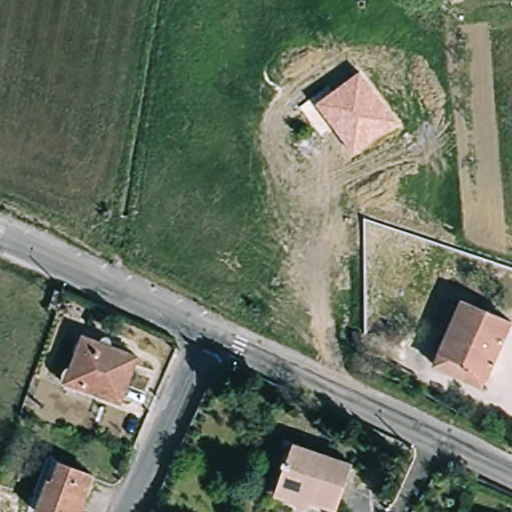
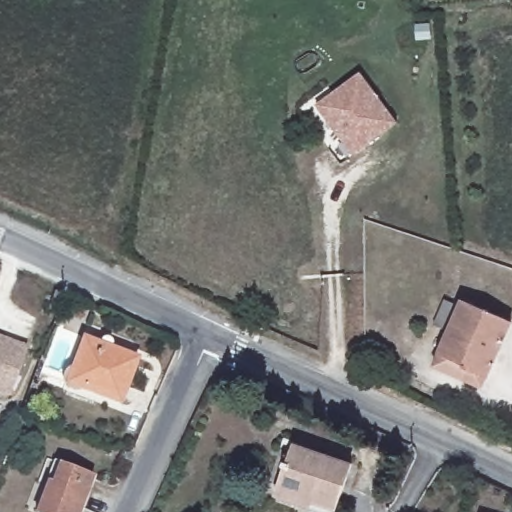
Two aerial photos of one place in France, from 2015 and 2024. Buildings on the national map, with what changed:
unchanged [(359,75),(398,122),(356,155),(319,104),(359,75)]
unchanged [(56,312),(48,310),(55,291),(63,294),(56,312)]
unchanged [(432,366),(438,353),(461,301),(509,322),(485,377),(481,387),(432,366)]
unchanged [(137,357),(120,402),(66,382),(83,337),(137,357)]
new [(26,347),(8,397),(0,394),(0,338),(26,347)]
unchanged [(336,509),(277,489),(293,443),(351,463),(336,509)]
unchanged [(35,512),(48,480),(51,481),(58,462),(92,476),(79,512),(35,512)]

